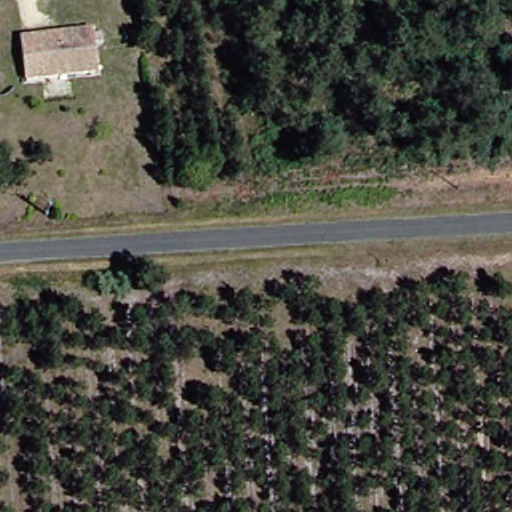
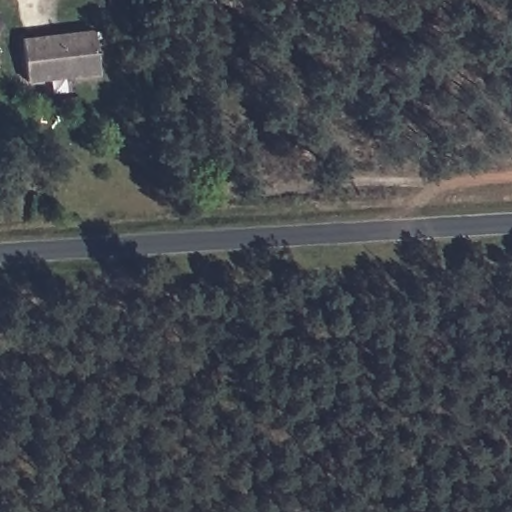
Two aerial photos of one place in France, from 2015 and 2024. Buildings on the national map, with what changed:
unchanged [(91,31),(94,73),(25,80),(19,39),(91,31)]

